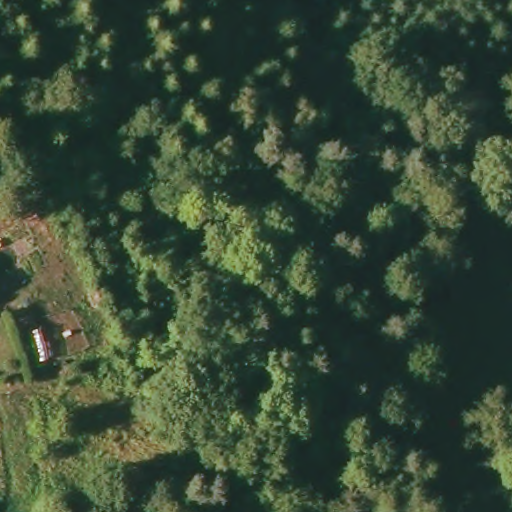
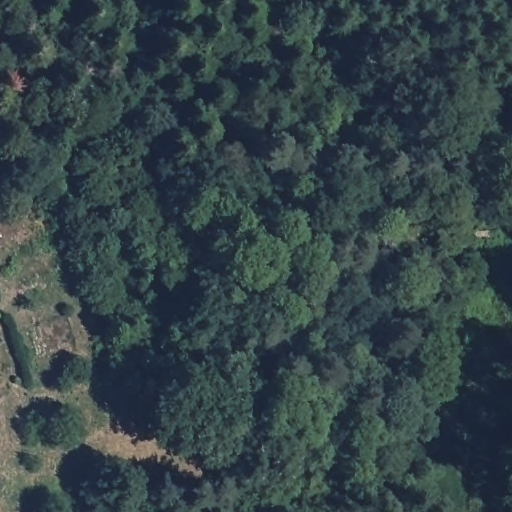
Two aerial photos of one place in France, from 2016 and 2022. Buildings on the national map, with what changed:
[]

